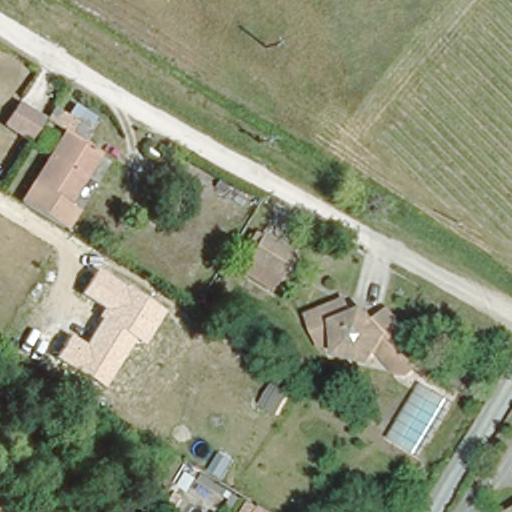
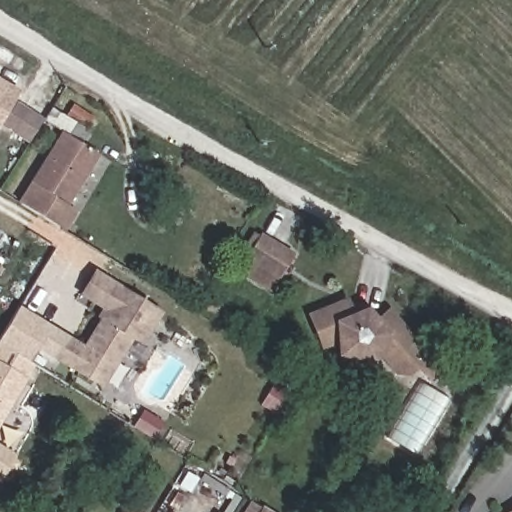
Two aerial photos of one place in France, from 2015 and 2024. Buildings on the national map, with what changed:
new [(18,96),(16,95),(1,118),(5,121),(0,128),(0,78),(20,90),(18,96)]
unchanged [(61,127),(41,114),(28,136),(12,125),(1,118),(16,95),(27,102),(43,113),(49,103),(80,123),(73,134),(97,150),(52,224),(15,201),(61,127)]
new [(0,244),(0,231),(6,234),(0,244)]
unchanged [(254,233),(284,253),(270,274),(240,254),(254,233)]
unchanged [(144,345),(134,338),(103,390),(78,375),(72,377),(64,364),(57,360),(70,334),(85,343),(102,317),(100,314),(105,308),(83,293),(98,269),(167,313),(144,345)]
new [(69,336),(57,360),(39,350),(31,362),(36,365),(28,378),(0,426),(0,337),(19,305),(69,336)]
unchanged [(416,379),(397,376),(398,374),(384,358),(372,369),(340,363),(337,346),(320,351),(310,322),(348,310),(359,324),(371,320),(379,330),(397,319),(417,346),(433,366),(416,379)]
new [(0,483),(0,445),(17,455),(0,483)]
unchanged [(277,512),(253,512),(260,501),(277,512)]
unchanged [(506,512),(512,509),(512,512),(506,512)]

